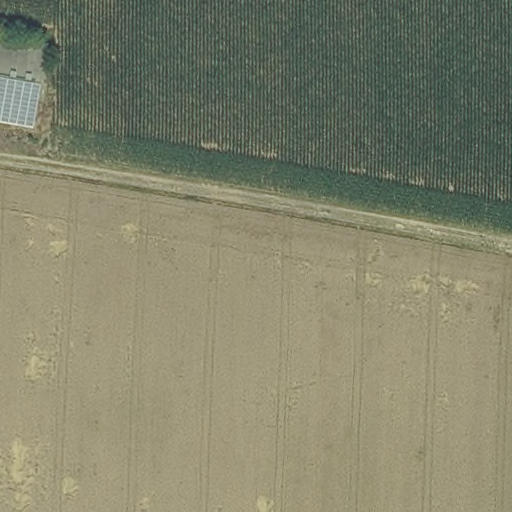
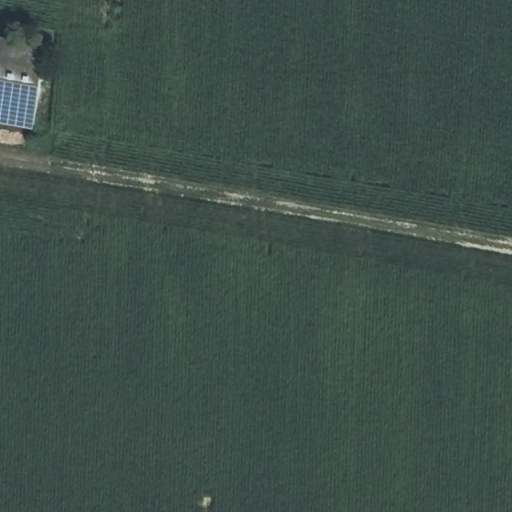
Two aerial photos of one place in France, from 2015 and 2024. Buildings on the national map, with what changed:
unchanged [(42,80),(35,119),(0,112),(0,31),(49,40),(42,80)]

